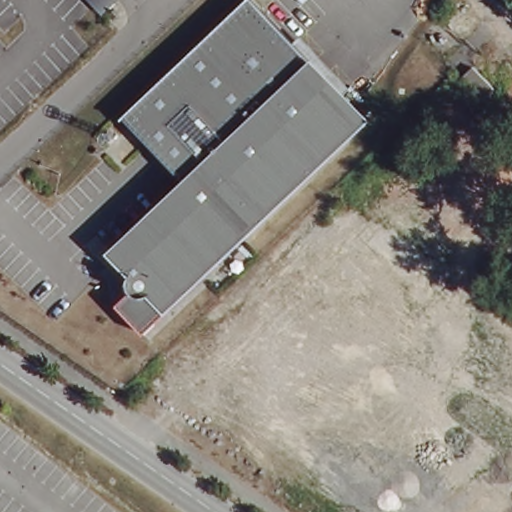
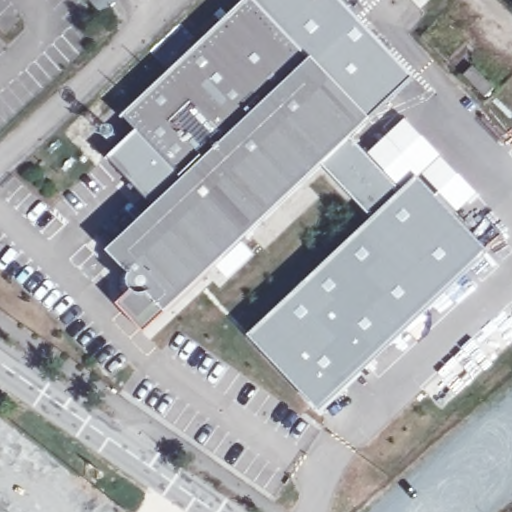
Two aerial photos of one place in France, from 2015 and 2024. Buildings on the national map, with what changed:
unchanged [(119,308),(134,294),(132,290),(132,285),(132,281),(134,278),(114,257),(187,187),(124,121),(250,0),(252,0),(370,126),(146,338),(119,308)]
new [(252,0),(341,0),(414,78),(370,126),(252,0)]
unchanged [(474,67),(495,89),(485,98),(465,76),(474,67)]
new [(187,187),(160,212),(109,158),(136,133),(187,187)]
new [(402,192),(419,178),(489,254),(319,411),(249,336),(374,218),(325,168),(354,141),(402,192)]

